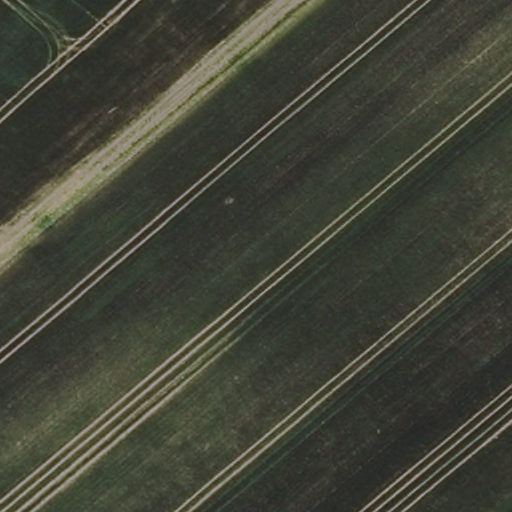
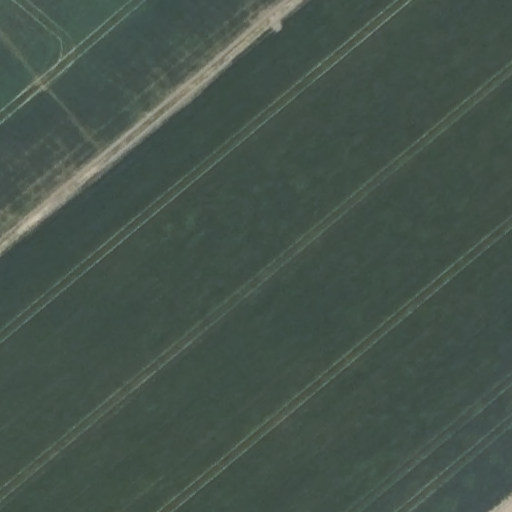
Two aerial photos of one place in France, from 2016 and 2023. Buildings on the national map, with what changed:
[]

